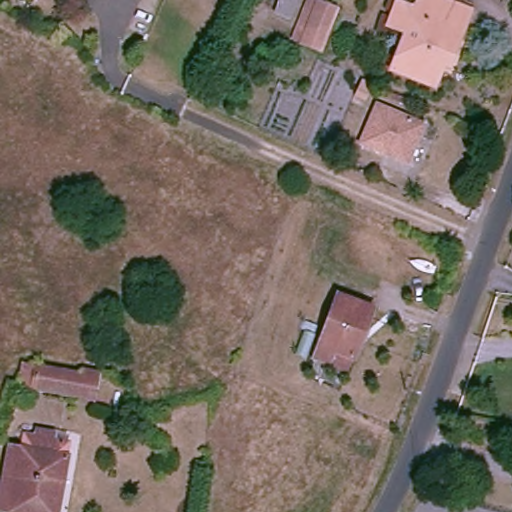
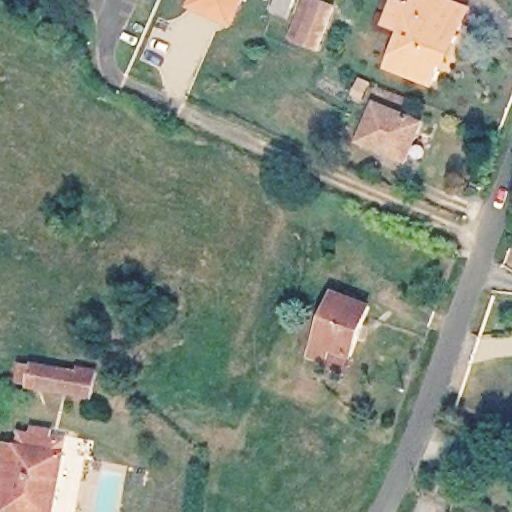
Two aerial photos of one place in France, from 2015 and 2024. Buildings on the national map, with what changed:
new [(244,0),(232,28),(186,8),(190,0),(244,0)]
unchanged [(435,85),(393,68),(406,32),(386,25),(395,0),(415,8),(419,0),(451,0),(472,7),(460,42),(450,68),(441,67),(435,85)]
unchanged [(330,14),(317,44),(300,37),(311,7),(330,14)]
unchanged [(377,105),(425,124),(410,162),(362,144),(377,105)]
unchanged [(316,357),(321,343),(340,296),(373,308),(355,356),(336,349),(330,363),(316,357)]
unchanged [(36,359),(94,372),(90,398),(70,393),(30,385),(36,359)]
unchanged [(2,452),(16,454),(19,441),(33,443),(35,434),(49,436),(49,446),(63,448),(54,512),(0,512),(0,466),(2,452)]

